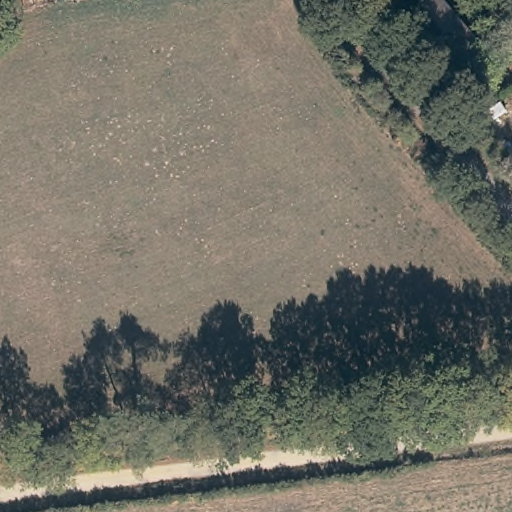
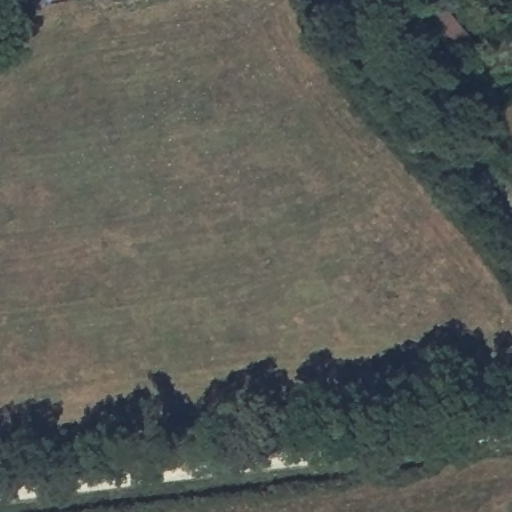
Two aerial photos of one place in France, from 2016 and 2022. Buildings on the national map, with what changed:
unchanged [(481,50),(447,76),(398,23),(427,0),(439,0),(481,50)]

